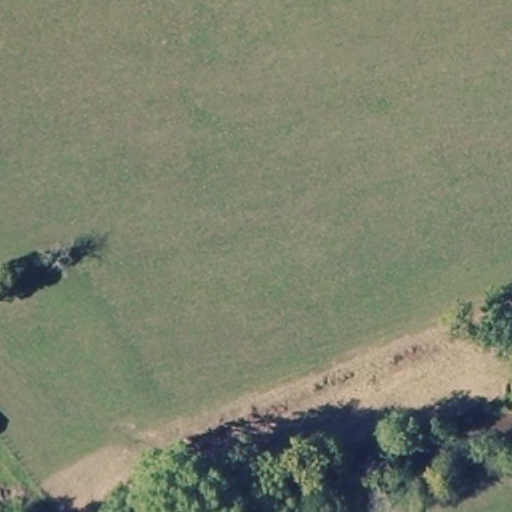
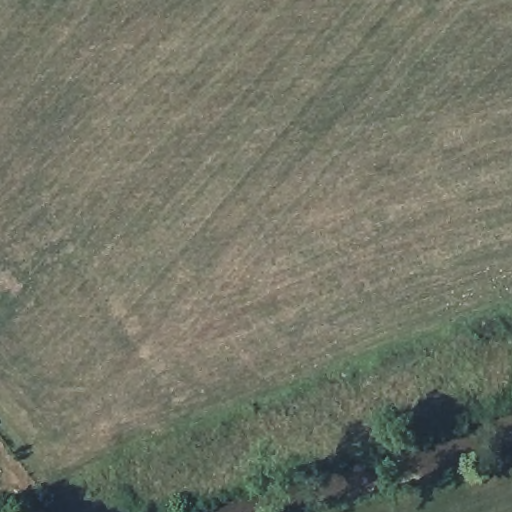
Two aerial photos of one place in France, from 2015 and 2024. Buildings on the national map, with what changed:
[]

